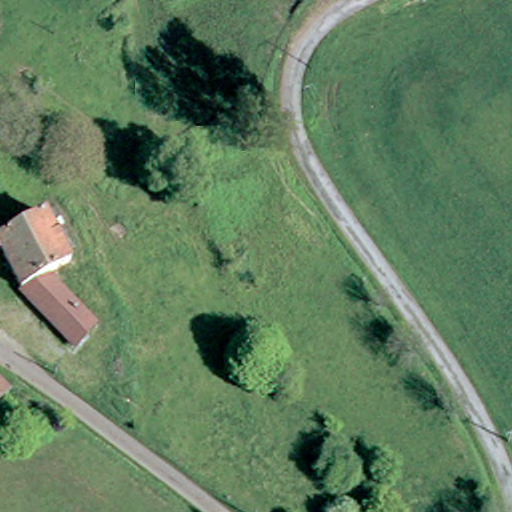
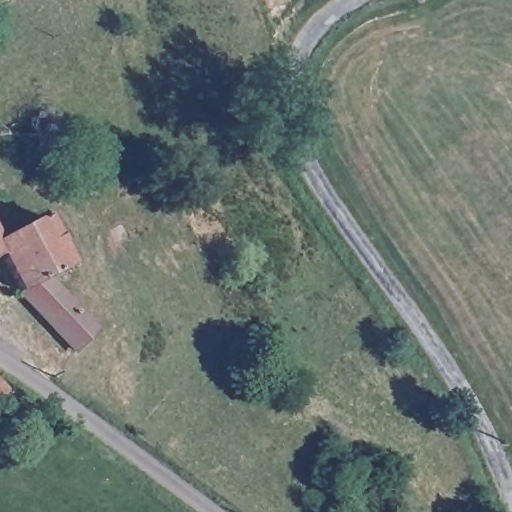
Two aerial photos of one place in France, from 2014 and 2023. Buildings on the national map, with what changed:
unchanged [(87,264),(65,277),(64,276),(38,292),(14,252),(0,259),(0,222),(11,244),(61,217),(87,264)]
unchanged [(65,277),(77,295),(113,327),(95,347),(38,292),(64,276),(65,277)]
unchanged [(0,406),(0,382),(12,396),(0,406)]

